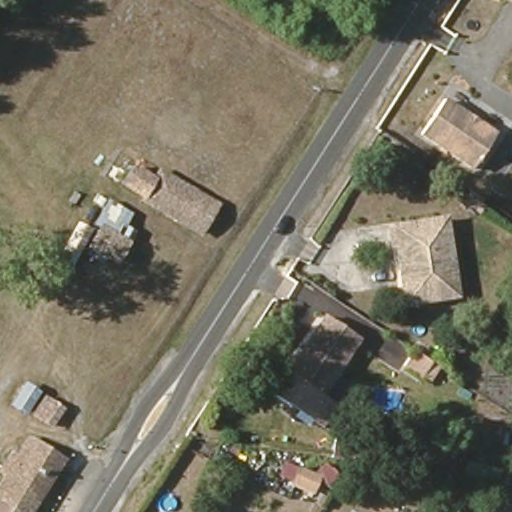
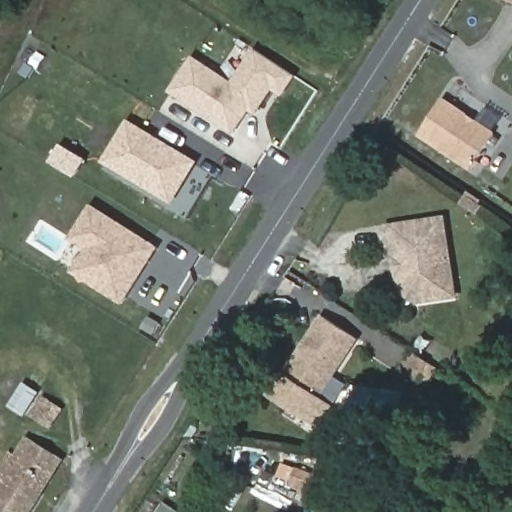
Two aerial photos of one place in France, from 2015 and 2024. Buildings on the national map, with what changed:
unchanged [(512,3),(492,0),(512,0),(512,3)]
new [(230,87),(252,52),(291,77),(278,96),(268,90),(252,115),(245,111),(230,135),(169,94),(192,63),(230,87)]
unchanged [(495,133),(479,170),(422,143),(438,105),(495,133)]
new [(140,181),(106,161),(130,122),(194,162),(175,194),(171,201),(140,181)]
demolished [(143,204),(147,199),(122,187),(133,166),(155,179),(160,170),(220,204),(201,237),(143,204)]
demolished [(89,250),(101,229),(95,226),(110,200),(132,214),(126,226),(135,234),(117,265),(89,250)]
new [(124,307),(71,273),(85,250),(75,239),(92,204),(161,248),(124,307)]
unchanged [(454,299),(417,303),(401,291),(393,245),(389,245),(386,229),(441,221),(454,299)]
unchanged [(317,402),(286,379),(324,320),(357,342),(317,402)]
demolished [(450,351),(428,338),(437,321),(456,332),(459,334),(450,351)]
unchanged [(438,370),(430,385),(420,379),(417,384),(397,372),(412,350),(438,370)]
new [(320,429),(273,398),(286,379),(317,402),(321,397),(335,407),(320,429)]
unchanged [(41,392),(26,416),(12,407),(25,384),(41,392)]
unchanged [(64,412),(52,425),(36,413),(46,398),(64,412)]
unchanged [(0,512),(0,489),(32,438),(59,457),(66,461),(33,512),(0,512)]
unchanged [(312,497),(287,488),(296,468),(320,476),(312,497)]

